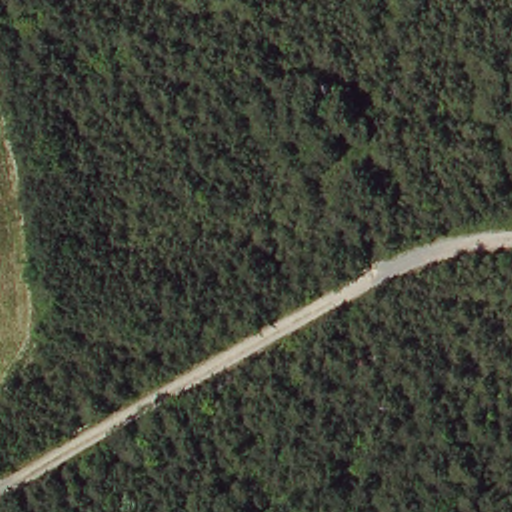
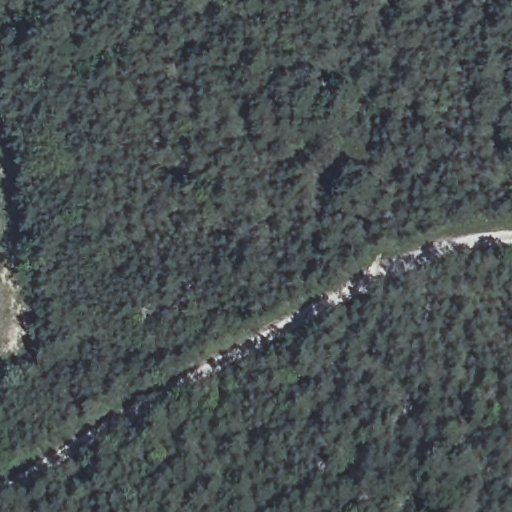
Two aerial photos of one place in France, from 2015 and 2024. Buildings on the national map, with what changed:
[]

